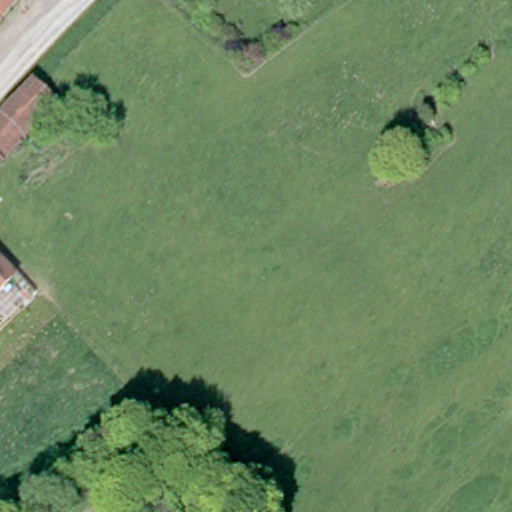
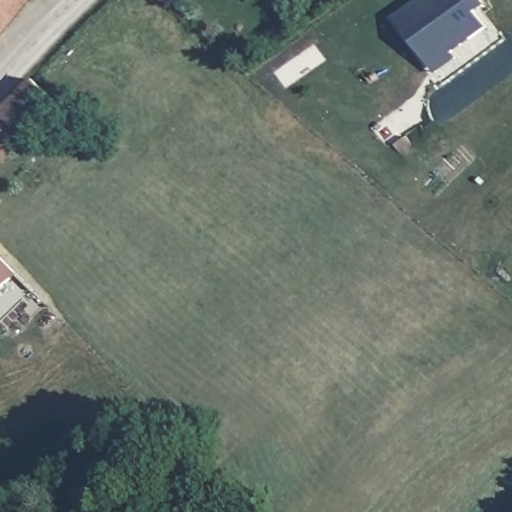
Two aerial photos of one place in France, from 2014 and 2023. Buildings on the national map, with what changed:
unchanged [(0,0),(13,0),(0,15),(0,0)]
new [(483,5),(474,12),(484,24),(449,51),(445,45),(425,59),(395,18),(420,0),(479,0),(483,5)]
unchanged [(60,102),(21,140),(4,159),(0,164),(0,117),(33,78),(60,102)]
unchanged [(0,257),(18,276),(0,292),(0,257)]

